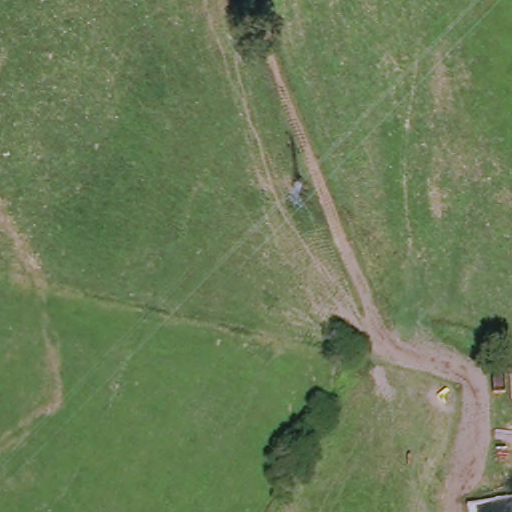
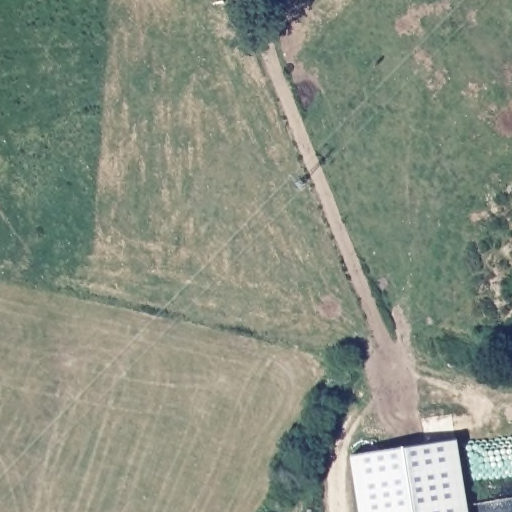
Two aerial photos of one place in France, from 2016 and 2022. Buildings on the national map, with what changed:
new [(350,456),(457,438),(470,512),(359,512),(350,456)]

